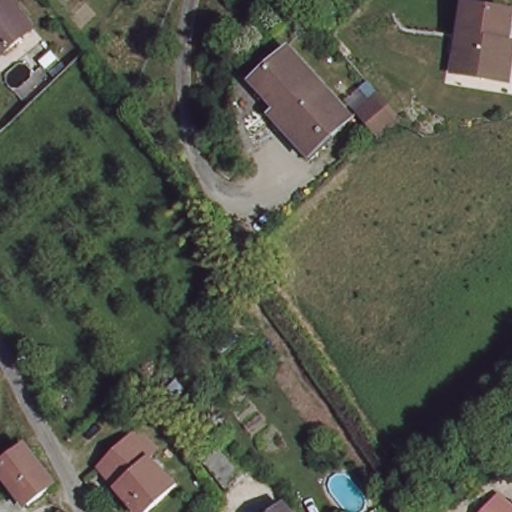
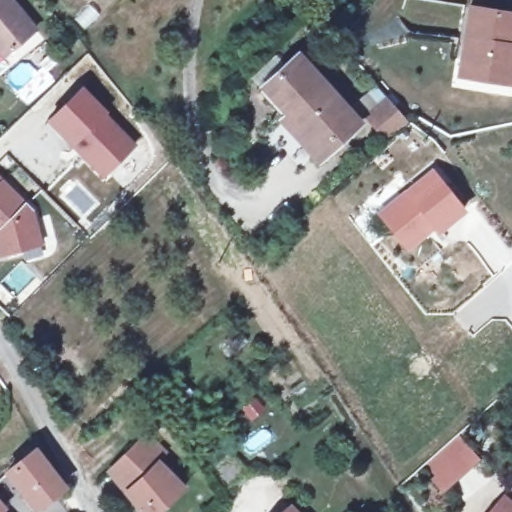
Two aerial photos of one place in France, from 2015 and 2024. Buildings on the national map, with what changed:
unchanged [(8,55),(0,44),(0,0),(8,0),(35,35),(8,55)]
unchanged [(512,14),(512,51),(512,87),(460,79),(473,8),(512,14)]
unchanged [(348,125),(315,160),(253,99),(288,65),(348,125)]
unchanged [(413,120),(389,139),(357,100),(381,81),(413,120)]
new [(83,85),(110,112),(108,114),(137,146),(102,178),(70,147),(46,121),(83,85)]
new [(436,232),(432,227),(405,250),(377,217),(427,173),(460,211),(436,232)]
new [(34,210),(43,245),(0,256),(0,177),(25,202),(34,210)]
new [(455,431),(475,454),(444,480),(425,458),(455,431)]
unchanged [(158,512),(138,512),(103,477),(135,445),(180,490),(158,512)]
unchanged [(63,484),(39,508),(4,475),(30,450),(63,484)]
unchanged [(501,512),(507,505),(512,509),(512,512),(501,512)]
unchanged [(3,512),(0,512),(0,507),(4,511),(3,512)]

